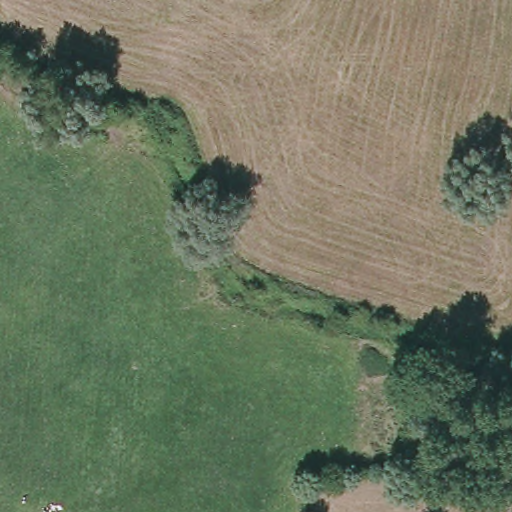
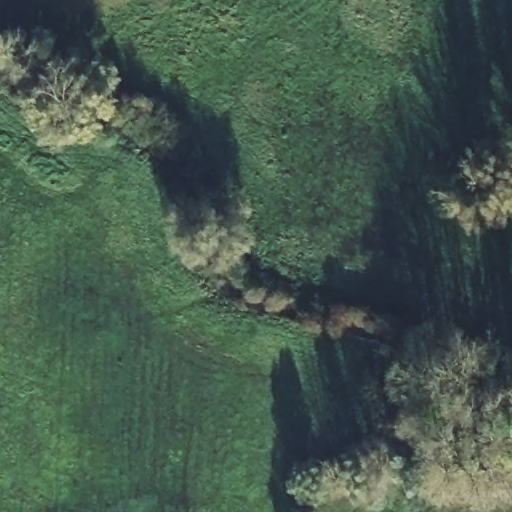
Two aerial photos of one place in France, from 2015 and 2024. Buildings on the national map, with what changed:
[]

